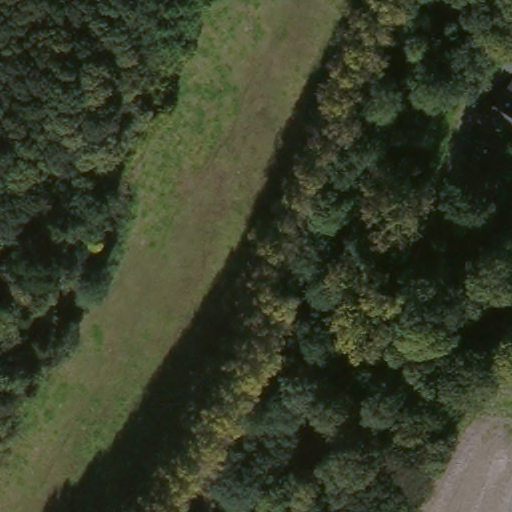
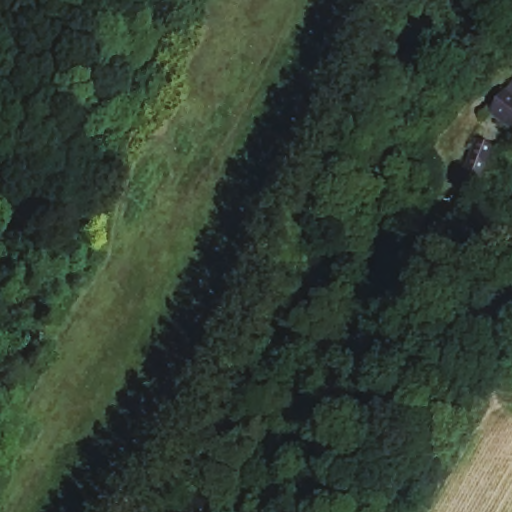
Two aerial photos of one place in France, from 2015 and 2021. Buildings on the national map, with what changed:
unchanged [(492,104),(507,84),(512,87),(512,117),(492,104)]
unchanged [(478,166),(464,157),(468,138),(468,137),(488,147),(478,166)]
unchanged [(426,357),(401,341),(422,307),(447,322),(426,357)]

